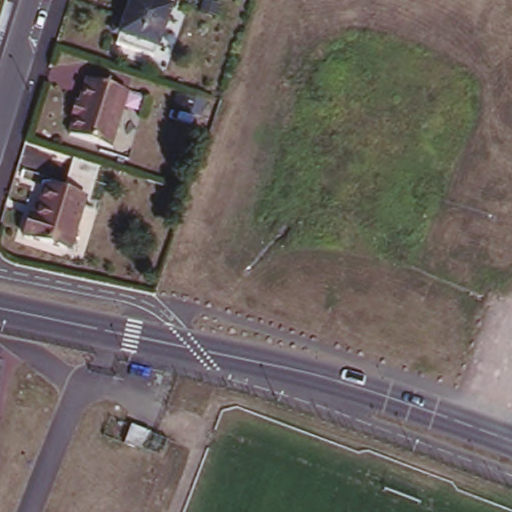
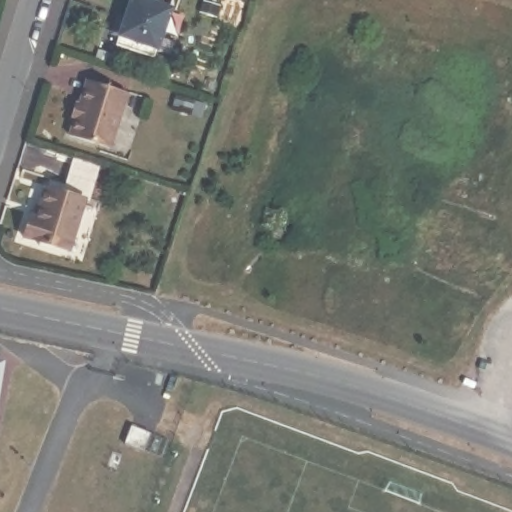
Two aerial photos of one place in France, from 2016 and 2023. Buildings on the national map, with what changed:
unchanged [(153,52),(115,40),(119,30),(113,28),(119,12),(124,14),(129,0),(161,0),(170,4),(156,43),(153,52)]
unchanged [(106,143),(65,130),(78,89),(82,75),(89,77),(123,87),(106,143)]
unchanged [(51,180),(65,184),(74,157),(100,166),(90,200),(85,197),(49,187),(51,180)]
unchanged [(68,251),(23,236),(30,215),(37,217),(46,186),(49,187),(85,197),(68,251)]
unchanged [(149,432),(143,451),(124,443),(130,426),(149,432)]

